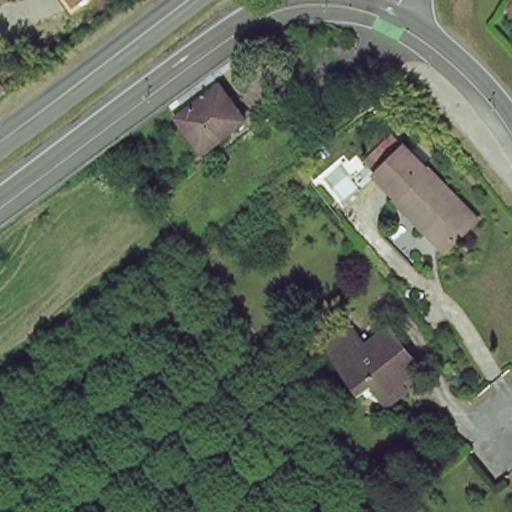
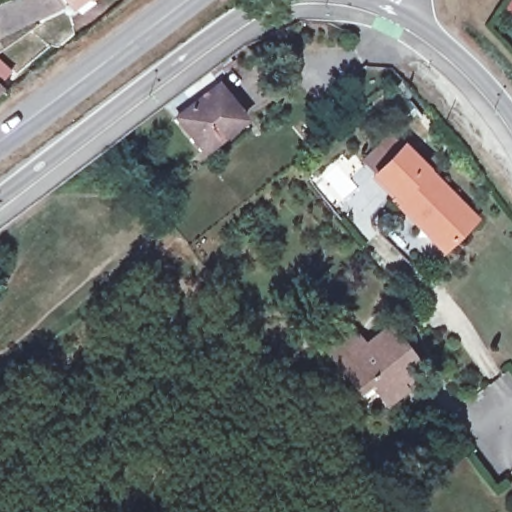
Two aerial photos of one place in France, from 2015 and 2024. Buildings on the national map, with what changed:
unchanged [(82,0),(64,11),(57,0),(82,0)]
unchanged [(217,85),(241,118),(199,149),(175,117),(217,85)]
unchanged [(480,218),(448,254),(392,204),(396,199),(375,177),(399,148),(480,218)]
unchanged [(417,362),(400,377),(405,383),(389,396),(367,372),(356,382),(338,360),(328,348),(355,324),(366,337),(384,322),(417,362)]

